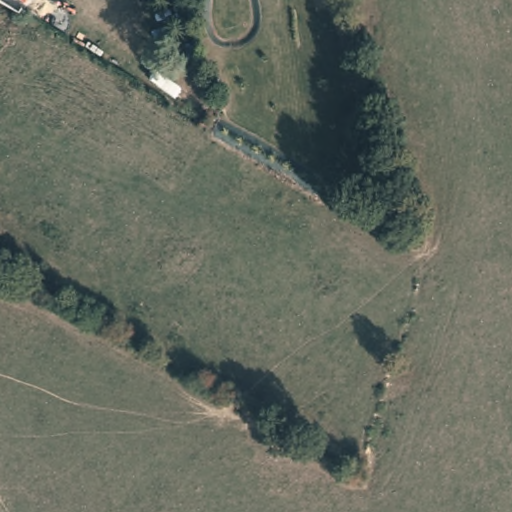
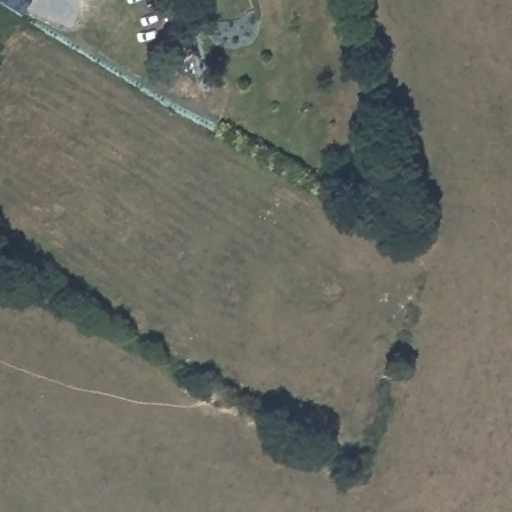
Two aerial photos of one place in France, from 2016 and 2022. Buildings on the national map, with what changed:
unchanged [(0,1),(0,0),(30,0),(20,14),(0,1)]

